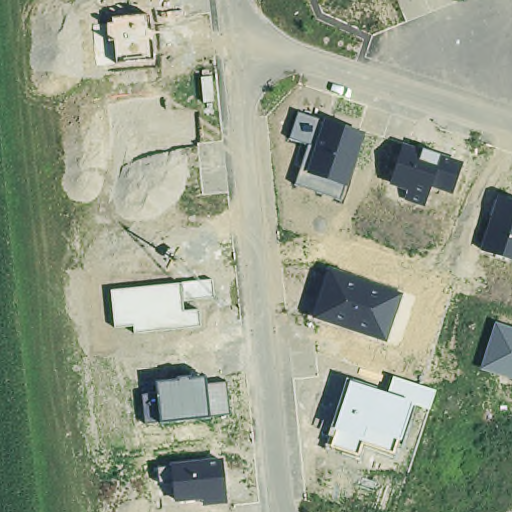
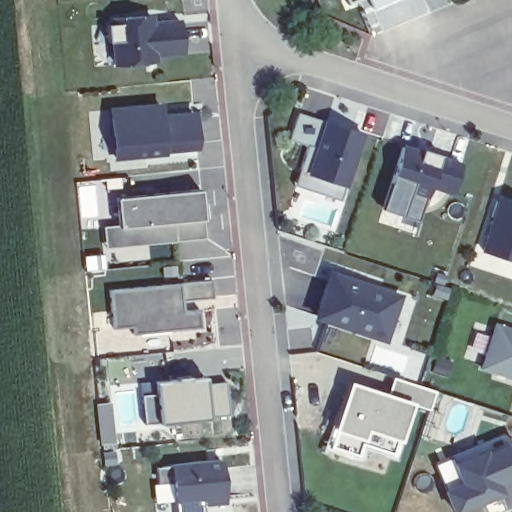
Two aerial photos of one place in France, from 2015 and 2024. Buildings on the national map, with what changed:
new [(346,3),(345,0),(353,0),(346,3)]
new [(374,11),(369,0),(399,0),(374,11)]
unchanged [(113,65),(111,41),(108,41),(106,25),(110,24),(109,18),(148,14),(153,61),(113,65)]
new [(184,54),(153,58),(149,23),(181,20),(184,54)]
new [(159,104),(161,115),(193,113),(196,147),(163,149),(163,152),(115,157),(111,108),(159,104)]
unchanged [(343,201),(296,186),(309,143),(292,138),(299,113),(366,134),(343,201)]
unchanged [(454,195),(431,188),(426,207),(406,199),(407,189),(387,183),(400,142),(464,163),(454,195)]
new [(117,197),(199,189),(203,236),(121,244),(105,246),(103,225),(119,224),(117,197)]
unchanged [(498,196),(512,200),(512,261),(479,251),(498,196)]
unchanged [(388,343),(311,318),(328,267),(404,293),(388,343)]
unchanged [(216,298),(183,300),(183,311),(199,310),(201,327),(133,333),(133,326),(115,327),(110,289),(213,279),(216,298)]
unchanged [(495,321),(512,327),(512,380),(480,370),(495,321)]
unchanged [(431,410),(409,403),(394,452),(362,443),(358,457),(329,448),(336,430),(333,429),(349,380),(389,393),(394,377),(438,391),(431,410)]
unchanged [(230,415),(211,417),(161,423),(145,425),(141,393),(158,391),(156,383),(206,378),(207,384),(225,382),(230,415)]
new [(453,464),(482,452),(483,454),(512,442),(512,474),(494,481),(497,487),(486,492),(488,496),(452,511),(444,491),(461,483),(453,464)]
unchanged [(228,503),(201,506),(201,500),(173,502),(171,482),(158,483),(157,467),(168,466),(169,463),(222,458),(228,503)]

